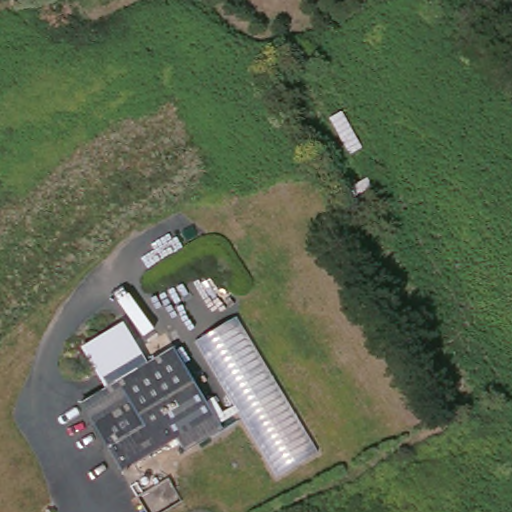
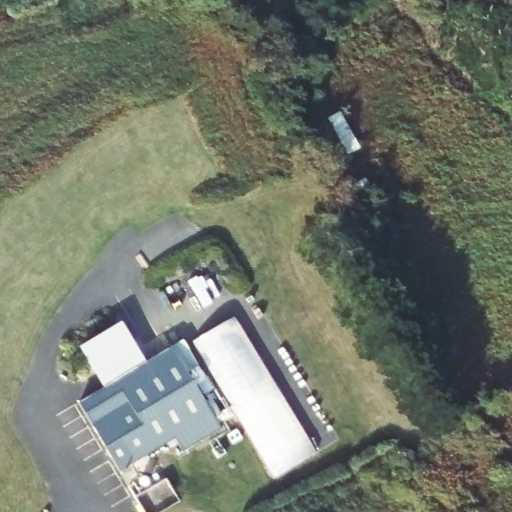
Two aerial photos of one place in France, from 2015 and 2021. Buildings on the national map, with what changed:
unchanged [(343,154),(330,116),(343,109),(362,145),(343,154)]
unchanged [(241,412),(223,423),(218,414),(235,402),(196,340),(236,313),(283,390),(315,444),(275,469),(244,417),(241,412)]
unchanged [(223,423),(226,427),(184,450),(179,439),(124,469),(83,404),(109,387),(86,351),(125,325),(149,362),(174,345),(218,414),(223,423)]

